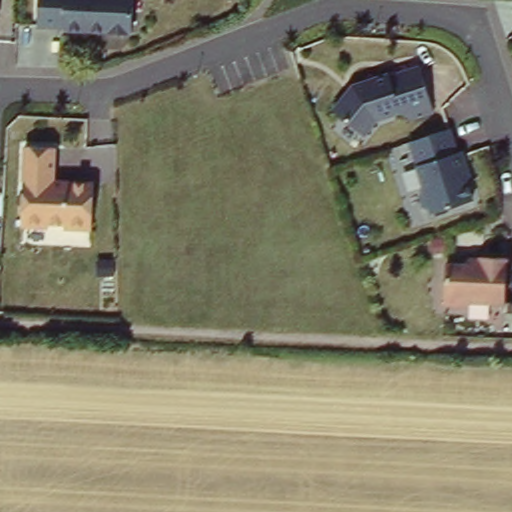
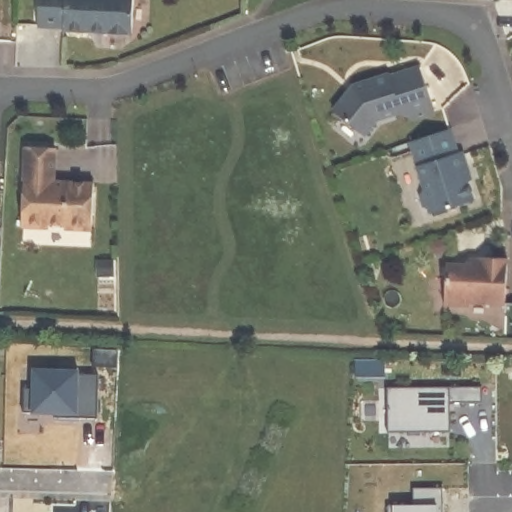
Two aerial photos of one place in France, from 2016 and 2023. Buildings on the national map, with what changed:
unchanged [(44,0),(133,0),(131,31),(43,28),(44,0)]
unchanged [(357,81),(416,63),(435,112),(412,122),(403,113),(375,120),(365,135),(335,107),(357,81)]
unchanged [(453,132),(473,197),(431,214),(410,146),(453,132)]
unchanged [(25,147),(57,147),(58,147),(59,182),(91,182),(93,226),(24,224),(25,147)]
unchanged [(452,261),(476,261),(476,255),(502,257),(502,303),(447,302),(452,261)]
new [(34,390),(35,372),(60,373),(60,369),(78,369),(78,375),(99,376),(97,416),(77,416),(22,414),(23,390),(34,390)]
new [(481,388),(481,403),(450,404),(450,432),(387,433),(388,389),(481,388)]
new [(415,506),(415,489),(443,489),(443,512),(388,512),(388,506),(392,506),(415,506)]

